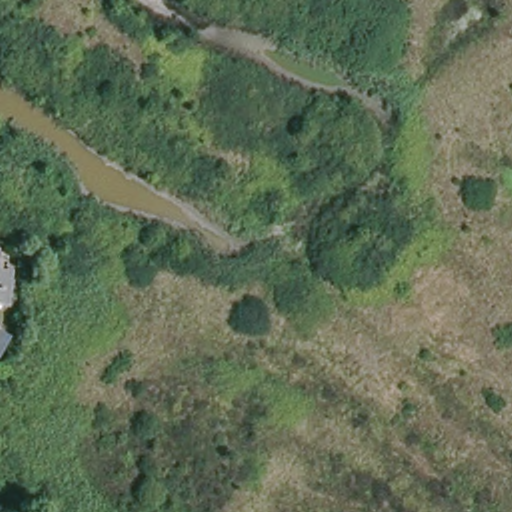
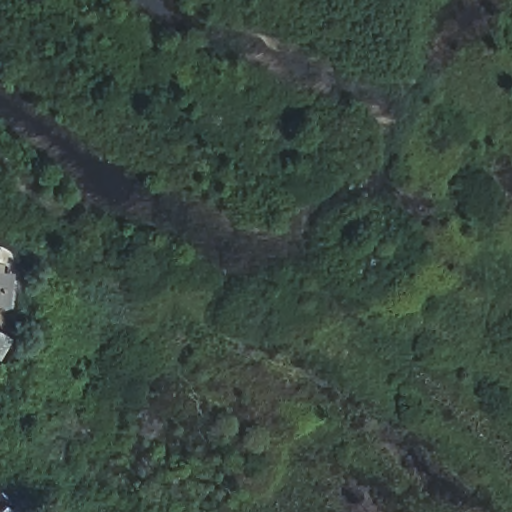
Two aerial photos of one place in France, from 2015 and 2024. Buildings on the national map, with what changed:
unchanged [(11,273),(7,304),(0,303),(0,272),(11,273)]

